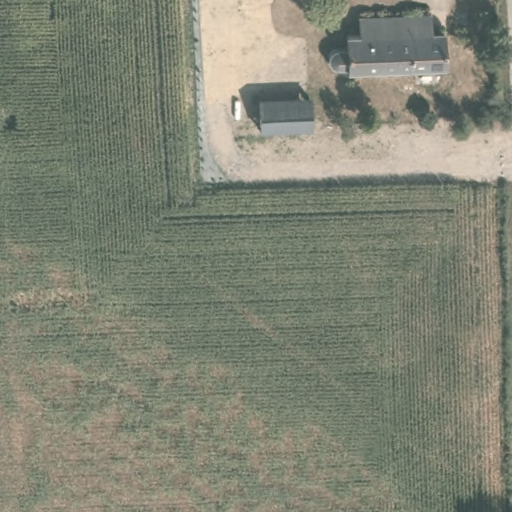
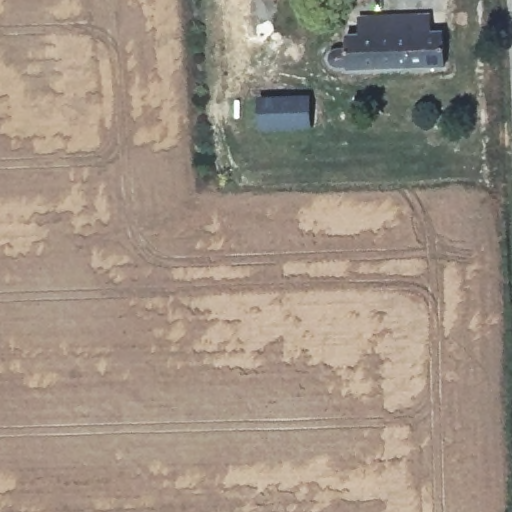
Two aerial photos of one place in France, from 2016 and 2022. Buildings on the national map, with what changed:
unchanged [(428,32),(442,31),(443,67),(345,72),(344,62),(341,63),(337,64),(332,63),(330,60),(327,57),(327,52),(328,48),(331,45),(335,43),(338,42),(342,44),(341,19),(428,14),(428,32)]
unchanged [(257,101),(307,99),(307,128),(257,130),(257,101)]

